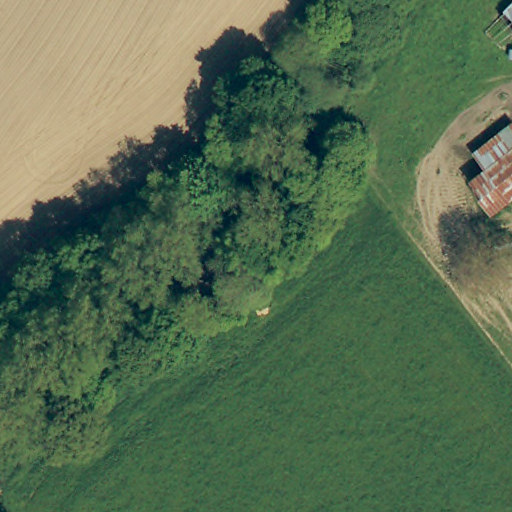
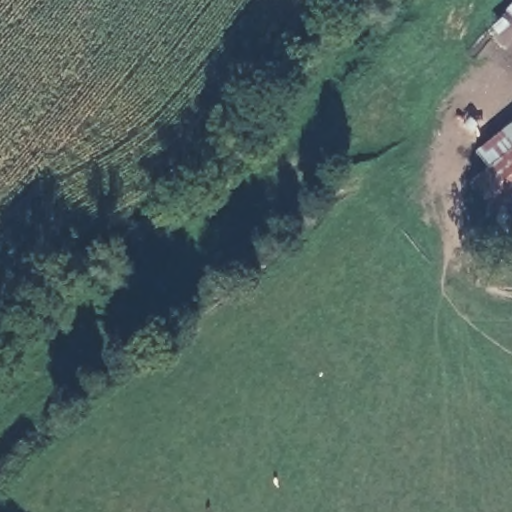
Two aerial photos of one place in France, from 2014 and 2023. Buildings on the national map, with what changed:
unchanged [(484,37),(512,10),(512,39),(499,52),(484,37)]
unchanged [(475,185),(492,170),(479,153),(512,128),(512,206),(501,216),(475,185)]

